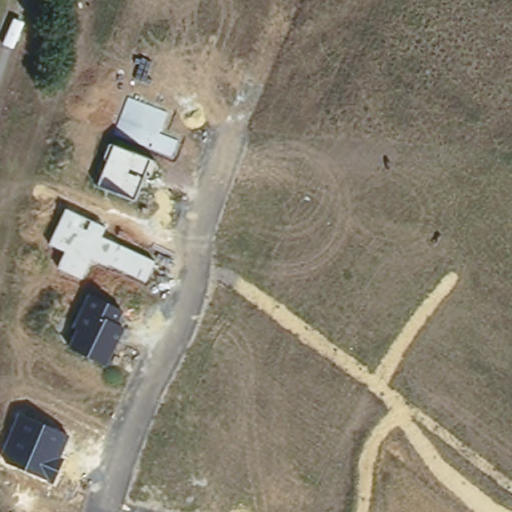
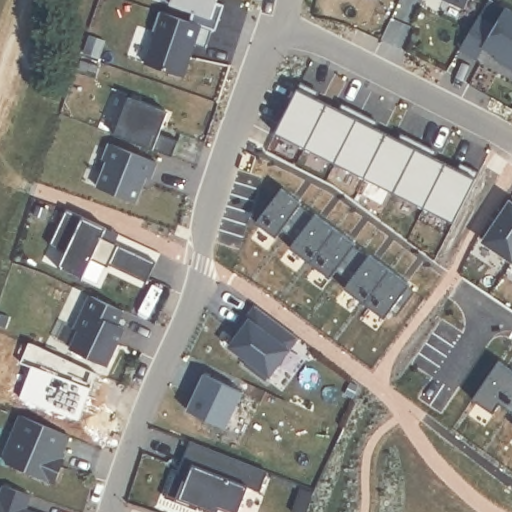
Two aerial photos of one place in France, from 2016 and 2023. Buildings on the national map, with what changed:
new [(192,12),(171,5),(173,0),(217,0),(216,2),(224,5),(215,30),(189,22),(192,12)]
new [(464,7),(448,0),(467,0),(464,7)]
new [(498,57),(483,48),(476,60),(458,50),(478,16),(495,25),(505,7),(512,11),(512,70),(500,63),(498,57)]
new [(212,29),(205,48),(190,42),(185,55),(190,56),(182,76),(145,64),(156,32),(152,31),(159,11),(212,29)]
new [(298,80),(316,89),(313,96),(342,110),(346,104),(375,119),(371,126),(401,140),(403,134),(435,150),(431,157),(462,172),(465,165),(478,172),(449,224),(273,134),(298,80)]
unchanged [(131,95),(171,111),(162,134),(182,141),(176,157),(155,148),(134,202),(96,186),(131,95)]
new [(302,202),(300,204),(307,209),(291,233),(283,227),(277,236),(258,221),(283,187),(302,202)]
new [(512,203),(512,260),(483,241),(510,202),(512,203)]
unchanged [(65,252),(49,245),(65,209),(108,227),(104,237),(155,260),(147,283),(94,260),(84,280),(59,266),(65,252)]
new [(315,215),(316,213),(336,228),(311,261),(292,246),(298,238),(291,233),(307,209),(315,215)]
new [(495,211),(501,215),(493,228),(486,223),(495,211)]
new [(356,242),(354,245),(361,250),(345,274),(337,268),(331,276),(311,261),(336,228),(356,242)]
new [(368,256),(370,253),(390,268),(365,301),(345,286),(351,279),(345,274),(361,250),(368,256)]
new [(410,282),(408,285),(415,290),(397,313),(391,309),(385,317),(365,301),(390,268),(410,282)]
unchanged [(78,329),(73,326),(88,294),(125,309),(119,324),(125,327),(109,367),(70,348),(78,329)]
new [(298,337),(266,379),(246,364),(249,360),(231,346),(250,321),(246,319),(256,306),(298,337)]
new [(512,404),(501,396),(492,411),(471,397),(497,360),(512,371),(512,404)]
new [(204,374),(244,392),(226,429),(187,411),(204,374)]
unchanged [(1,454),(17,414),(70,435),(61,459),(65,460),(55,486),(5,463),(1,454)]
new [(260,491),(249,487),(239,512),(230,512),(220,508),(219,512),(214,512),(199,506),(197,510),(165,497),(174,474),(192,481),(197,467),(182,461),(190,441),(268,472),(260,491)]
new [(26,509),(34,512),(0,512),(0,493),(3,485),(31,495),(26,509)]

